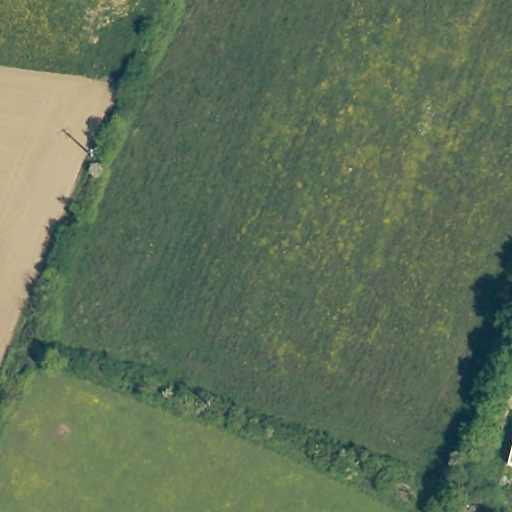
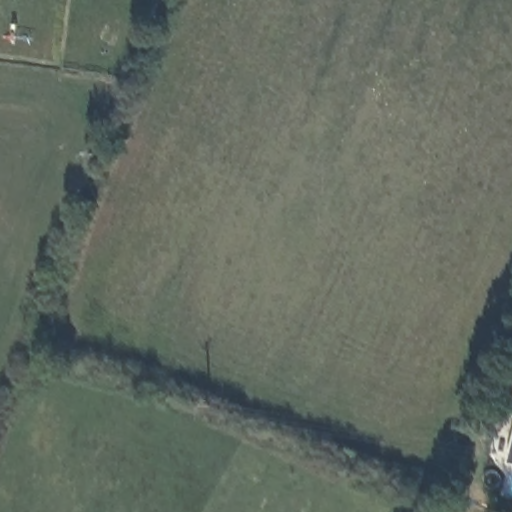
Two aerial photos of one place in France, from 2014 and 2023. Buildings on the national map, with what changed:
unchanged [(512,444),(512,466),(506,464),(512,444)]

